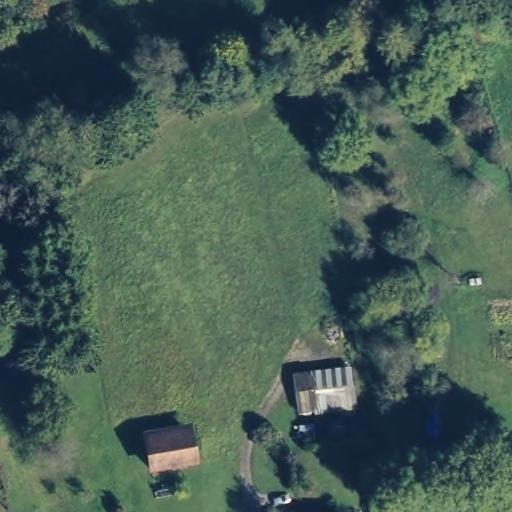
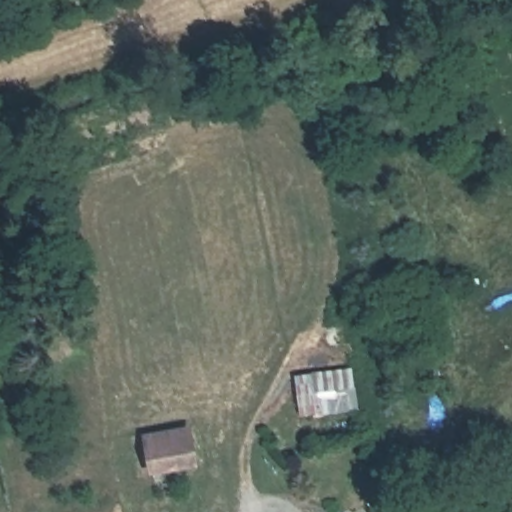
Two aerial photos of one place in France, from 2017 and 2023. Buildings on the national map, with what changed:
unchanged [(327,52),(344,49),(347,69),(331,72),(327,52)]
unchanged [(409,306),(413,327),(388,331),(384,310),(409,306)]
unchanged [(333,374),(332,357),(348,359),(351,417),(296,420),(298,378),(333,374)]
unchanged [(141,439),(183,431),(188,463),(146,470),(141,439)]

